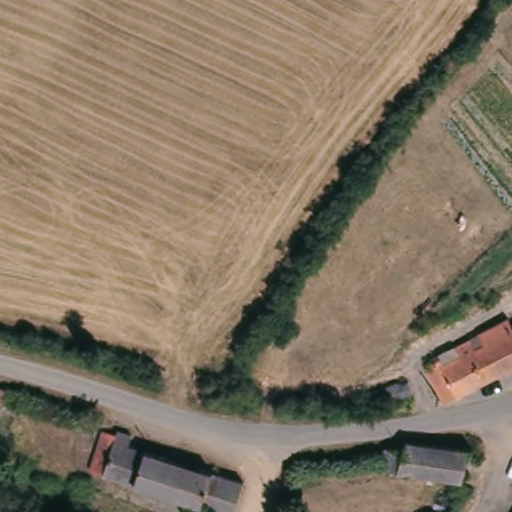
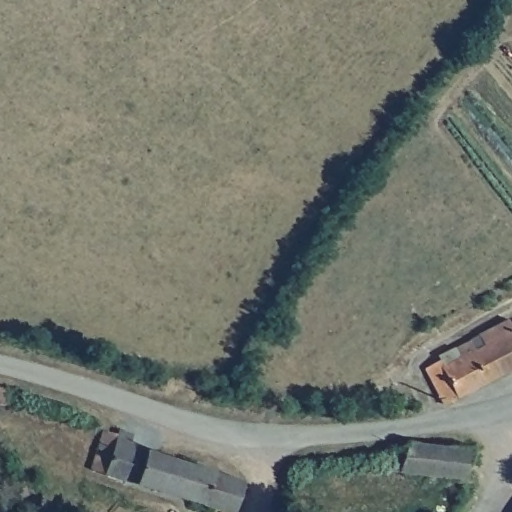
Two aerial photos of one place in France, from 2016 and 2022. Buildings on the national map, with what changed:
unchanged [(445,363),(448,369),(465,360),(460,351),(474,343),(478,352),(486,347),(483,338),(509,322),(512,326),(512,371),(445,403),(428,372),(445,363)]
unchanged [(16,399),(12,416),(0,413),(0,395),(16,399)]
unchanged [(100,430),(114,435),(115,430),(131,433),(128,446),(246,479),(237,512),(223,512),(89,473),(100,430)]
unchanged [(405,472),(386,468),(391,451),(410,456),(413,445),(475,452),(468,483),(405,472)]

